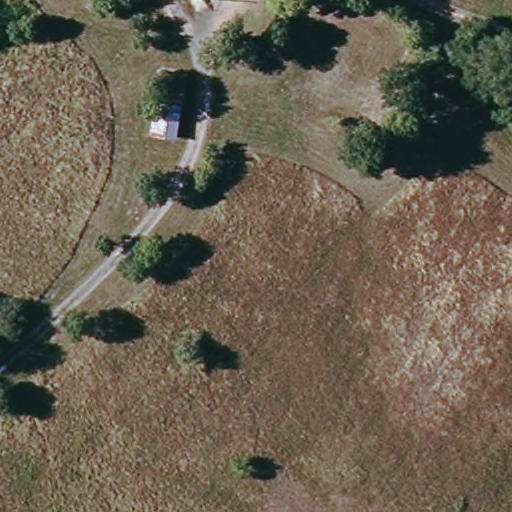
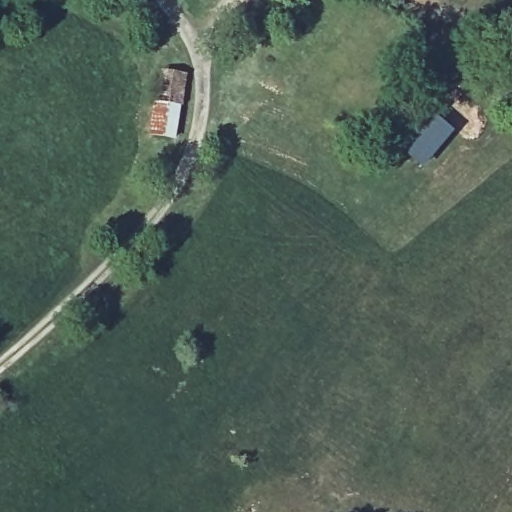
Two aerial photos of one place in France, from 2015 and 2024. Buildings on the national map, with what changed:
unchanged [(178,101),(179,138),(156,140),(154,102),(178,101)]
new [(426,167),(404,150),(432,114),(454,131),(426,167)]

